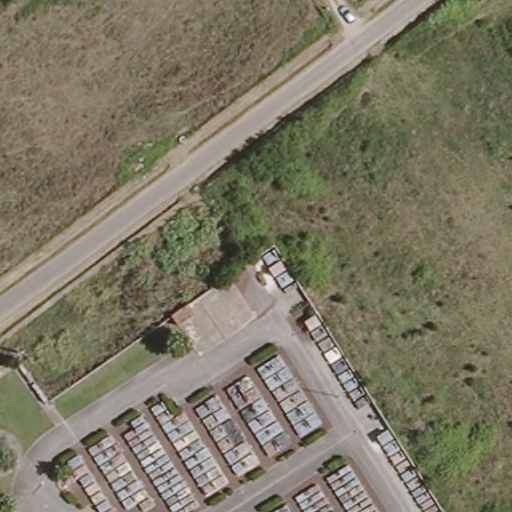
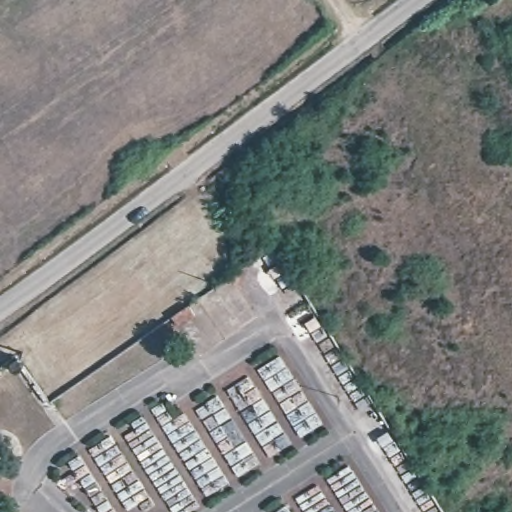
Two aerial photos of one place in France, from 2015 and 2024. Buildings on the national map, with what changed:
unchanged [(185,216),(197,209),(202,220),(192,227),(185,216)]

